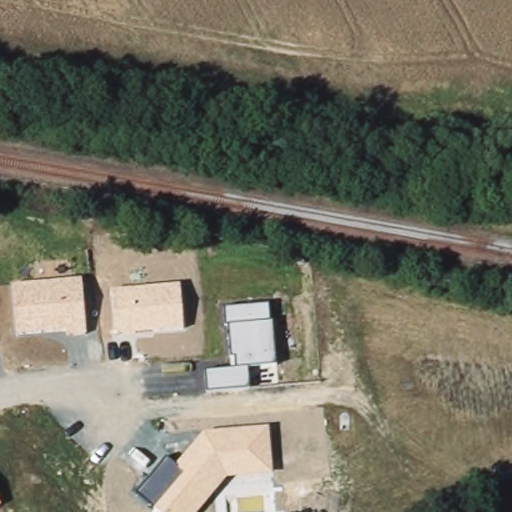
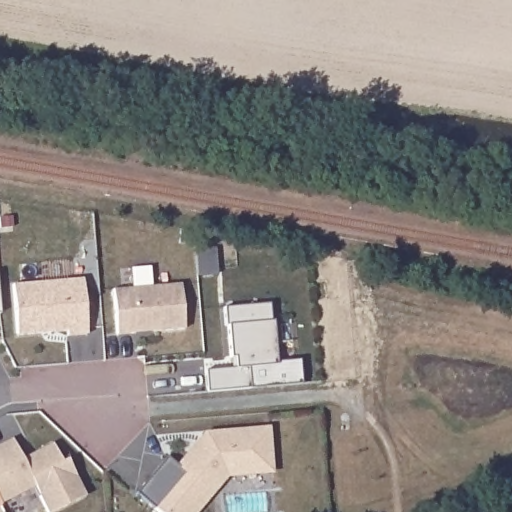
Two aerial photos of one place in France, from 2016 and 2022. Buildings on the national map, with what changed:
new [(215,249),(217,274),(197,276),(195,251),(215,249)]
unchanged [(65,336),(65,331),(17,334),(12,285),(81,279),(86,335),(65,336)]
unchanged [(117,335),(112,291),(180,285),(184,330),(117,335)]
unchanged [(247,368),(249,389),(209,392),(207,373),(232,369),(230,325),(226,325),(225,310),(268,306),(270,322),(273,322),(276,364),(247,368)]
unchanged [(272,474),(226,477),(198,512),(159,512),(137,494),(166,457),(176,465),(203,433),(268,428),(272,474)]
new [(12,438),(23,457),(53,443),(61,461),(67,458),(85,495),(49,512),(46,512),(34,488),(1,505),(0,503),(0,444),(12,438)]
unchanged [(0,506),(0,503),(1,505),(0,506)]

